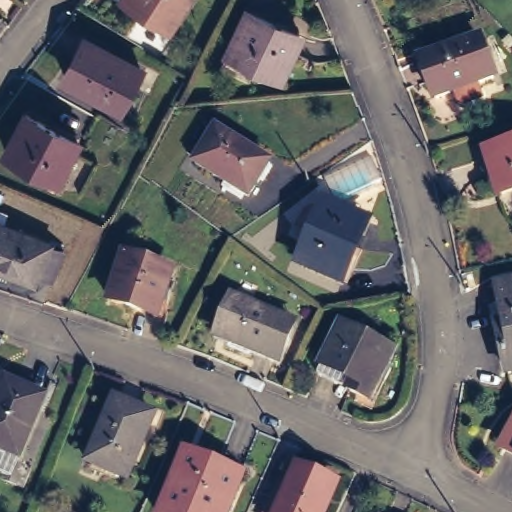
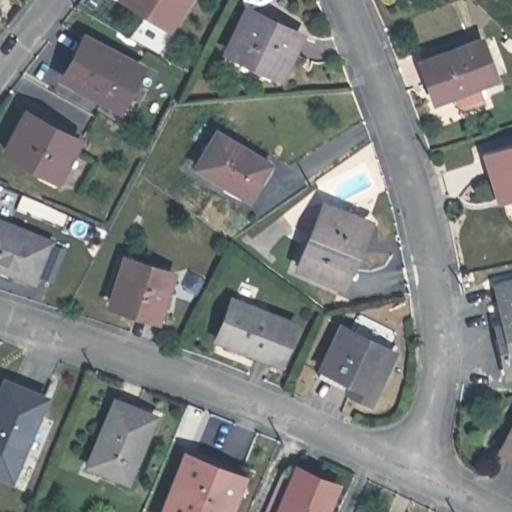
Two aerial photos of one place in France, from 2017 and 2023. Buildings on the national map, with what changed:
unchanged [(130,0),(193,0),(179,28),(130,0)]
unchanged [(310,38),(290,78),(239,51),(260,10),(310,38)]
unchanged [(496,78),(480,83),(484,98),(464,104),(459,101),(455,90),(437,95),(425,56),(484,39),(496,78)]
unchanged [(125,112),(70,83),(92,44),(145,73),(125,112)]
unchanged [(57,180),(3,154),(22,114),(76,142),(57,180)]
unchanged [(277,163),(257,197),(205,166),(225,130),(277,163)]
unchanged [(497,189),(485,149),(512,142),(512,186),(497,189)]
unchanged [(347,278),(305,260),(330,199),(372,217),(347,278)]
unchanged [(0,260),(0,216),(52,239),(36,275),(0,260)]
unchanged [(165,323),(119,307),(134,263),(180,278),(165,323)]
unchanged [(506,290),(512,289),(512,322),(506,290)]
unchanged [(215,341),(229,301),(300,328),(285,366),(215,341)]
unchanged [(377,397),(329,368),(354,323),(403,351),(377,397)]
unchanged [(507,343),(512,341),(512,365),(507,343)]
unchanged [(0,470),(0,410),(10,384),(48,399),(19,478),(0,470)]
unchanged [(135,478),(97,463),(122,399),(160,415),(135,478)]
unchanged [(507,456),(512,446),(512,459),(507,456)]
unchanged [(239,512),(180,512),(202,458),(252,478),(239,512)]
unchanged [(331,512),(288,512),(303,474),(340,489),(331,512)]

